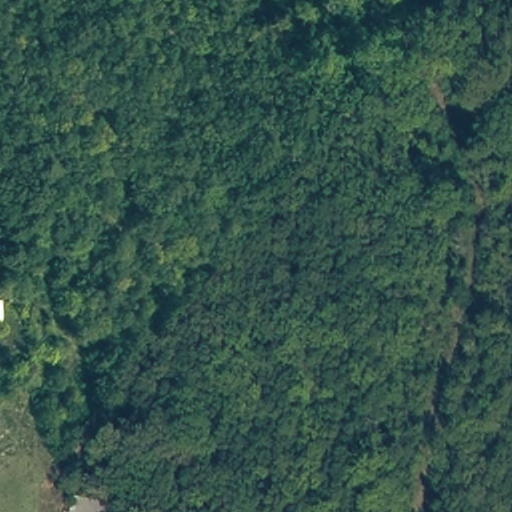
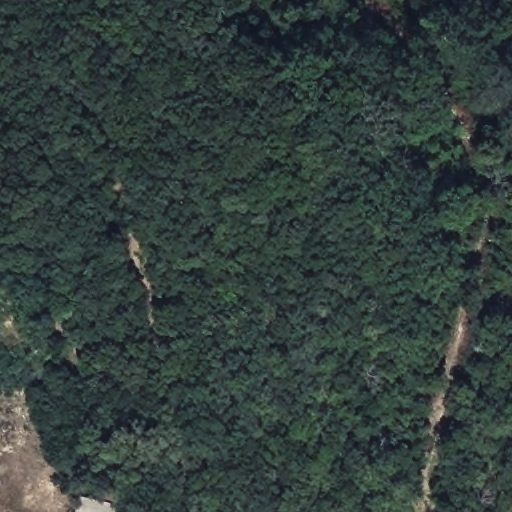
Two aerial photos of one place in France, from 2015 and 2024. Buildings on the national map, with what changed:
unchanged [(120,512),(77,512),(83,497),(121,506),(120,512)]

